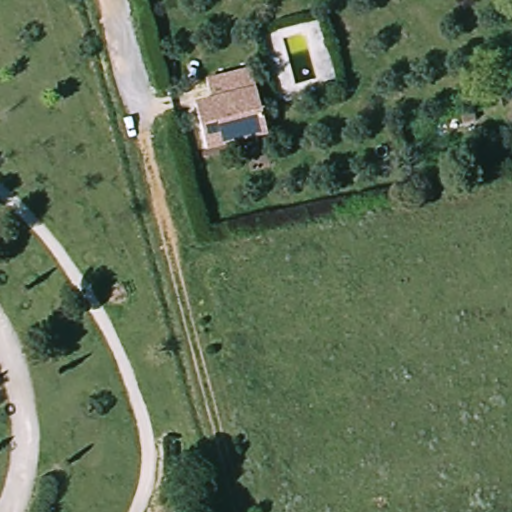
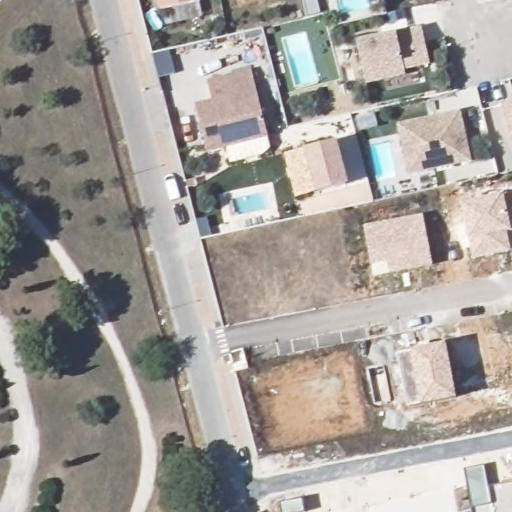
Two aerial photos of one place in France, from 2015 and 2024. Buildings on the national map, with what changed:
new [(156,0),(193,0),(158,7),(156,0)]
new [(429,64),(405,70),(405,75),(366,84),(363,70),(356,40),(396,30),(421,25),(429,64)]
unchanged [(267,133),(206,149),(195,106),(211,102),(206,82),(251,70),(267,133)]
new [(509,144),(500,104),(512,101),(512,143),(509,144)]
new [(461,110),(473,161),(408,176),(396,124),(461,110)]
new [(356,118),(374,114),(377,127),(359,131),(356,118)]
new [(349,184),(317,193),(304,148),(337,140),(349,184)]
new [(469,240),(461,203),(505,195),(512,193),(512,228),(512,231),(508,232),(511,250),(473,259),(469,240)]
new [(388,262),(371,265),(364,225),(425,214),(434,266),(390,273),(388,262)]
new [(411,349),(446,342),(456,398),(419,406),(408,407),(397,353),(411,349)]
new [(473,510),(466,470),(486,466),(490,490),(512,485),(512,512),(467,512),(473,510)]

